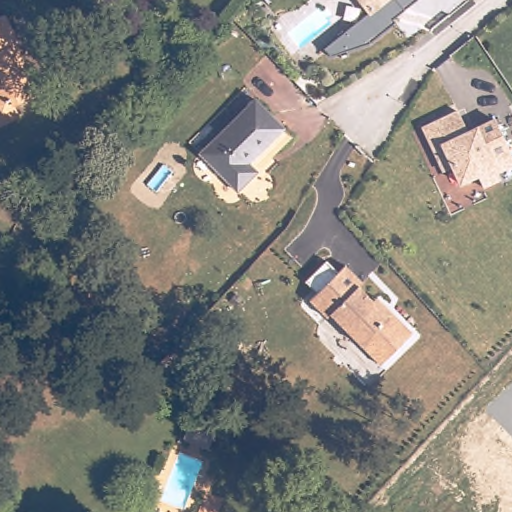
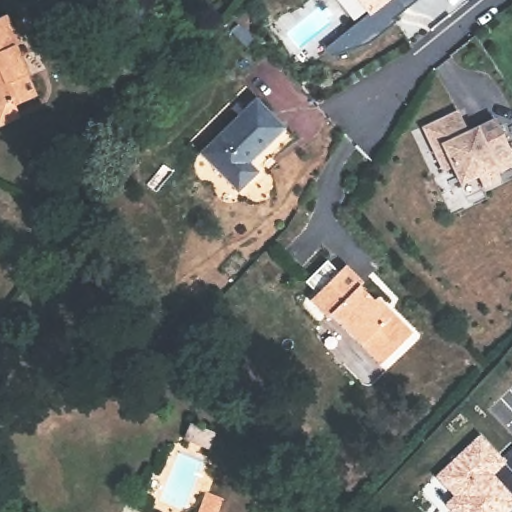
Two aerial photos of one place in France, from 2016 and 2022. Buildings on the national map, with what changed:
unchanged [(393,19),(397,22),(368,44),(330,58),(322,47),(364,12),(353,0),(415,0),(393,19)]
unchanged [(0,131),(0,19),(16,15),(23,46),(24,53),(31,80),(28,80),(34,105),(13,110),(18,126),(0,131)]
unchanged [(264,165),(237,194),(198,156),(253,96),(285,128),(292,136),(264,165)]
unchanged [(497,116),(512,152),(512,165),(501,171),(503,177),(484,185),(481,179),(457,186),(450,171),(443,174),(432,165),(416,127),(456,108),(466,130),(497,116)]
unchanged [(328,313),(325,317),(307,300),(314,292),(303,281),(324,260),(335,271),(342,264),(359,281),(356,285),(387,315),(390,311),(410,331),(379,362),(328,313)]
new [(508,461),(490,477),(501,490),(506,485),(512,490),(512,509),(509,512),(458,512),(448,501),(457,493),(439,473),(483,433),(508,461)]

